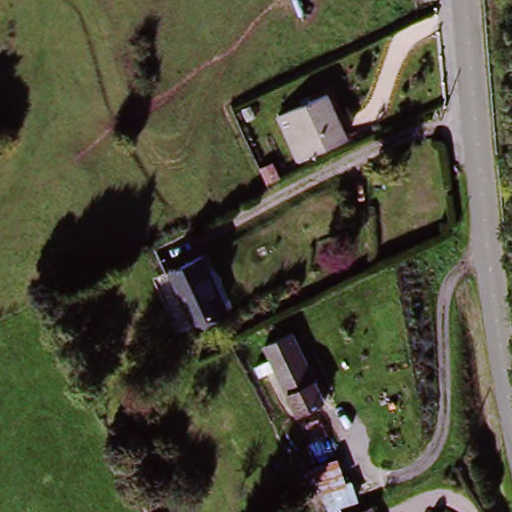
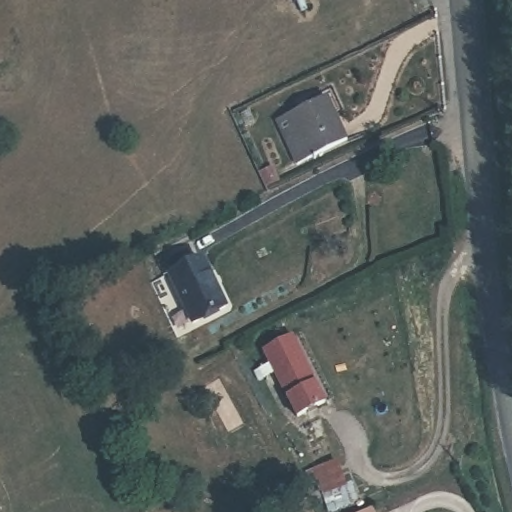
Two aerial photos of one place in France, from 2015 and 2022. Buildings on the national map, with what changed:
unchanged [(300,165),(281,122),(318,105),(337,149),(300,165)]
unchanged [(227,308),(192,326),(166,275),(200,257),(227,308)]
unchanged [(262,350),(290,337),(325,409),(297,422),(262,350)]
unchanged [(358,503),(341,512),(332,512),(325,497),(312,472),(335,462),(347,487),(350,485),(358,503)]

